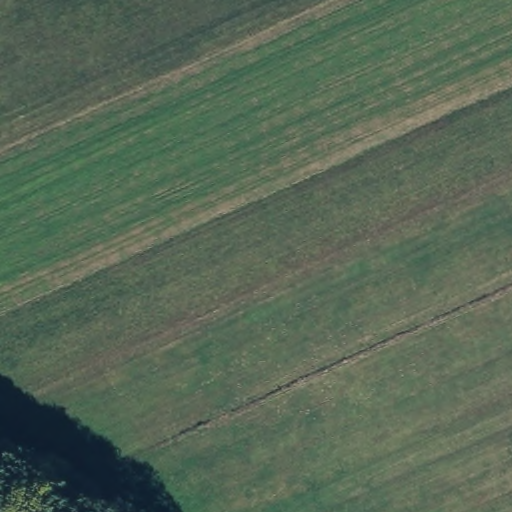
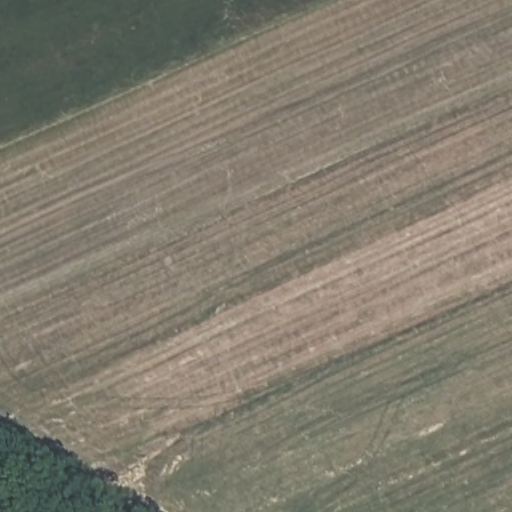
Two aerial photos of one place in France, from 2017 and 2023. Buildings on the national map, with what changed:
[]

